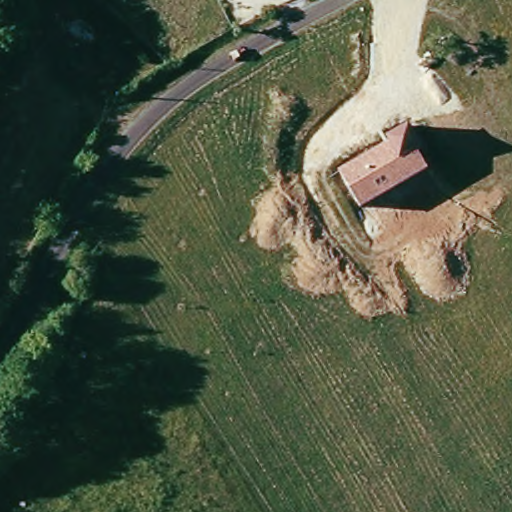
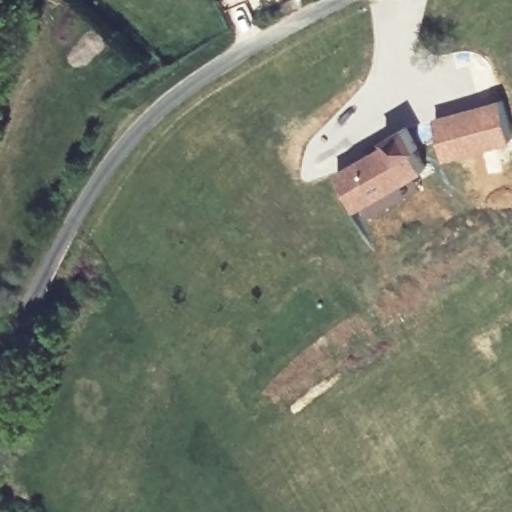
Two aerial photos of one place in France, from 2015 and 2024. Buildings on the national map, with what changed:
new [(502,96),(512,131),(512,141),(446,158),(435,114),(502,96)]
unchanged [(422,147),(419,149),(429,168),(362,207),(340,169),(389,139),(387,136),(409,123),(422,147)]

